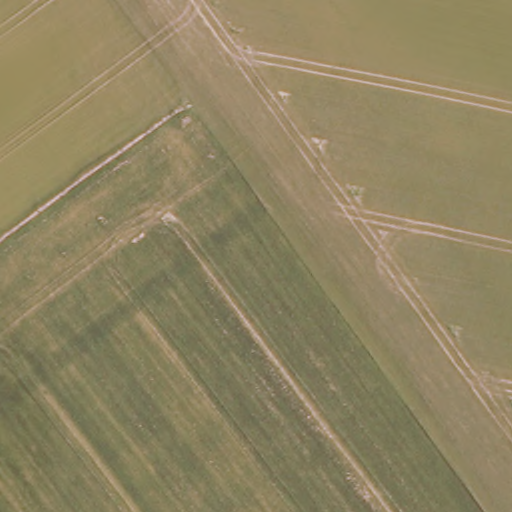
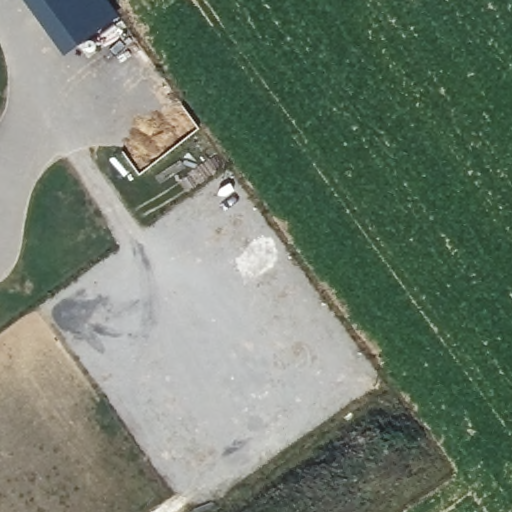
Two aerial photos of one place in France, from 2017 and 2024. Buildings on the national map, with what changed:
new [(81,48),(68,57),(28,0),(47,0),(81,48)]
new [(122,19),(81,48),(47,0),(108,0),(122,19)]

